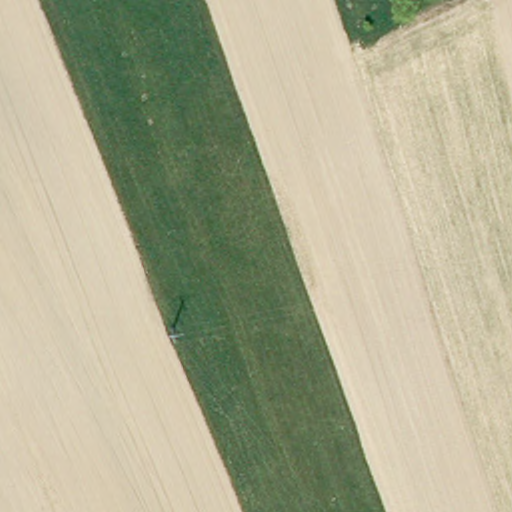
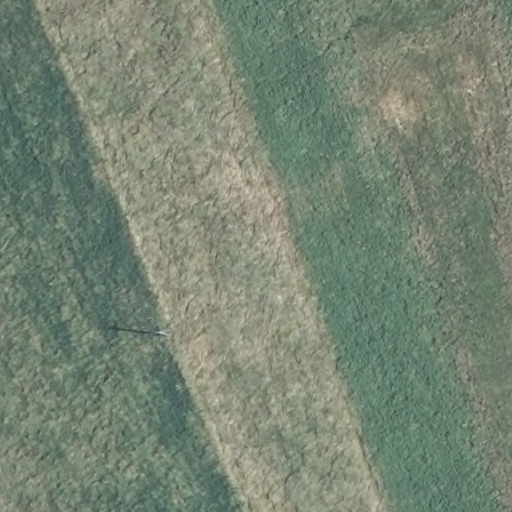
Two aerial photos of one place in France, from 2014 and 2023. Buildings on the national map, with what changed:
[]

